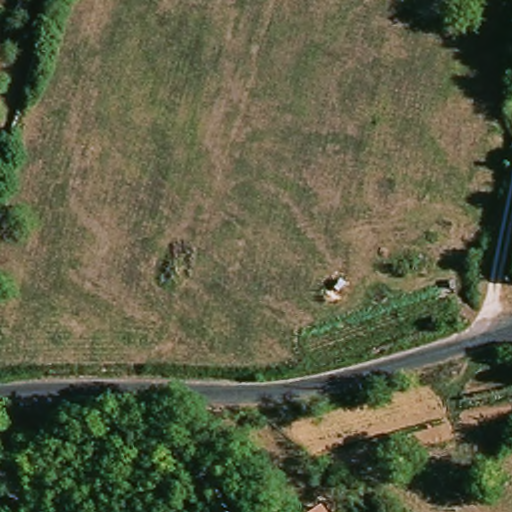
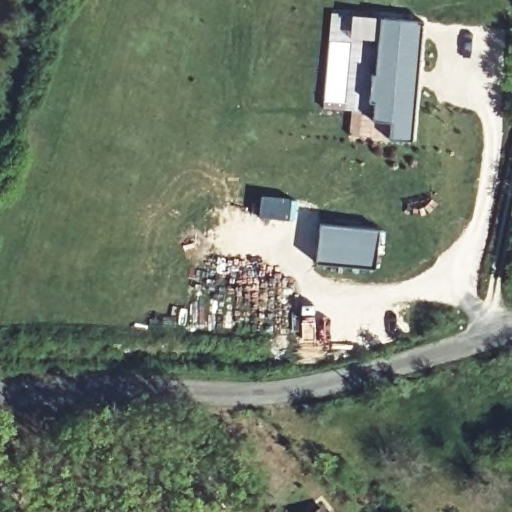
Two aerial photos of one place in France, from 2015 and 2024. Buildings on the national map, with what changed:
new [(424,21),(413,142),(387,140),(389,121),(371,120),(373,99),(368,99),(371,73),(376,73),(380,18),(424,21)]
new [(379,230),(375,270),(316,264),(320,223),(379,230)]
unchanged [(320,509),(322,512),(316,512),(320,509)]

